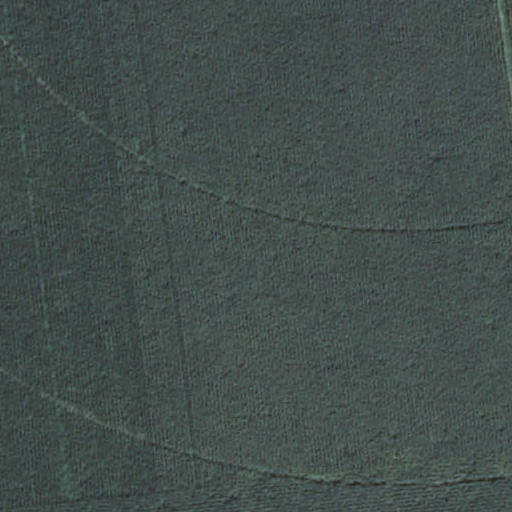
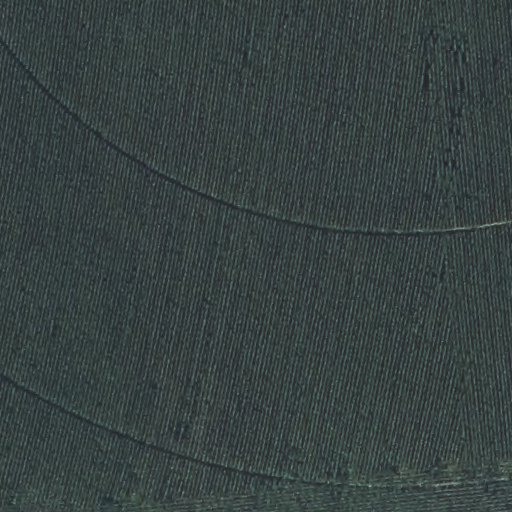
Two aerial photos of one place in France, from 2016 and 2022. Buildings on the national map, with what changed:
[]

